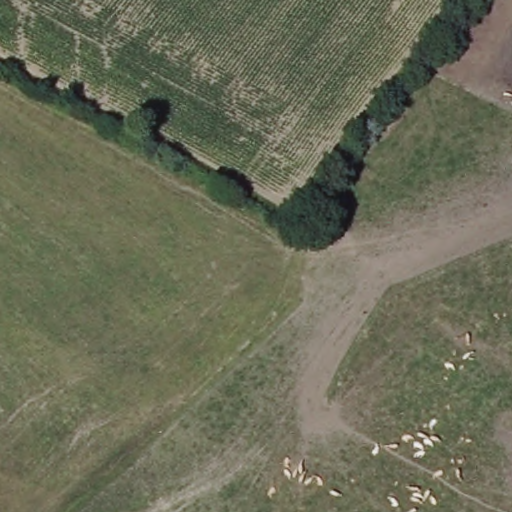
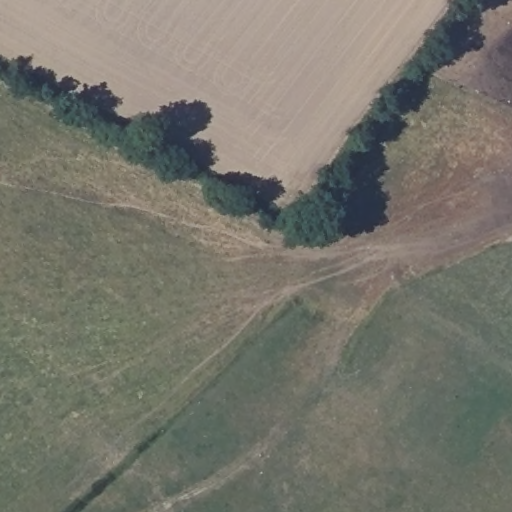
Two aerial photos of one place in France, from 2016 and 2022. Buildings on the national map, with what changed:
[]

